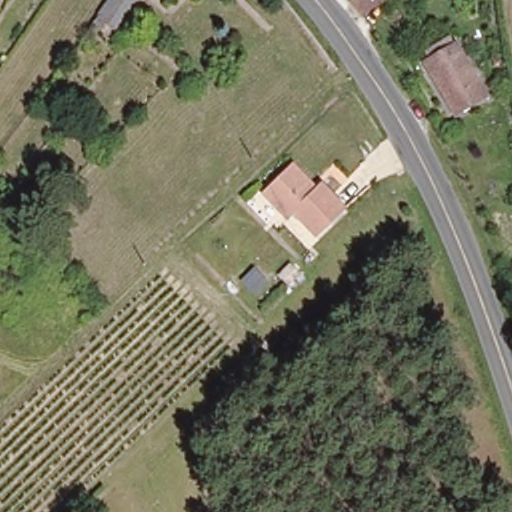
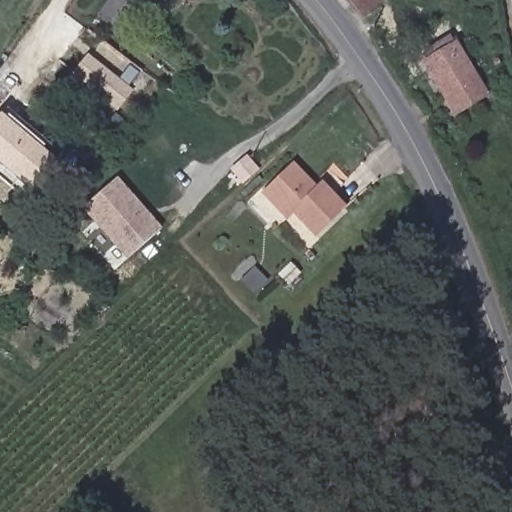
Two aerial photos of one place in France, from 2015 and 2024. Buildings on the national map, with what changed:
unchanged [(112,36),(93,19),(109,0),(139,0),(112,36)]
unchanged [(360,12),(349,0),(374,0),(360,12)]
unchanged [(452,106),(426,70),(453,49),(480,85),(452,106)]
new [(88,55),(133,89),(117,111),(71,76),(88,55)]
new [(55,160),(31,189),(0,164),(0,114),(0,113),(55,160)]
unchanged [(320,183),(345,207),(317,236),(292,213),(287,217),(261,193),(289,165),(314,188),(320,183)]
new [(160,229),(126,259),(81,209),(115,178),(160,229)]

